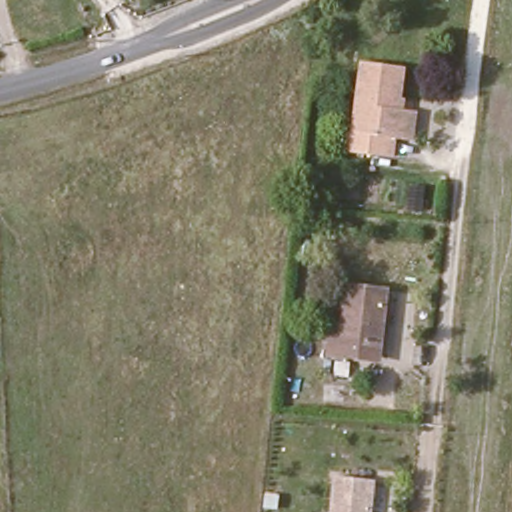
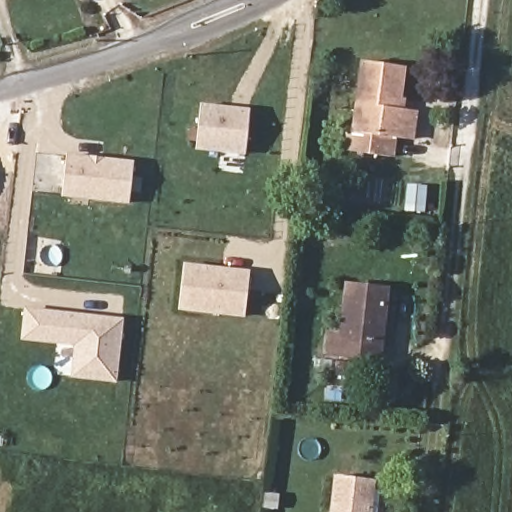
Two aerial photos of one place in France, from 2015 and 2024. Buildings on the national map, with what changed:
unchanged [(420,137),(410,136),(396,135),(392,160),(342,153),(345,129),(359,129),(365,64),(404,68),(400,111),(411,112),(423,113),(420,137)]
new [(251,111),(246,155),(195,151),(201,106),(251,111)]
new [(135,163),(129,206),(64,199),(66,156),(135,163)]
new [(251,272),(246,319),(180,312),(184,266),(251,272)]
unchanged [(367,360),(330,356),(333,336),(349,337),(355,289),(391,294),(385,344),(383,362),(367,360)]
new [(125,321),(119,384),(72,381),(74,349),(20,343),(25,310),(125,321)]
unchanged [(332,512),(336,477),(373,482),(370,512),(332,512)]

